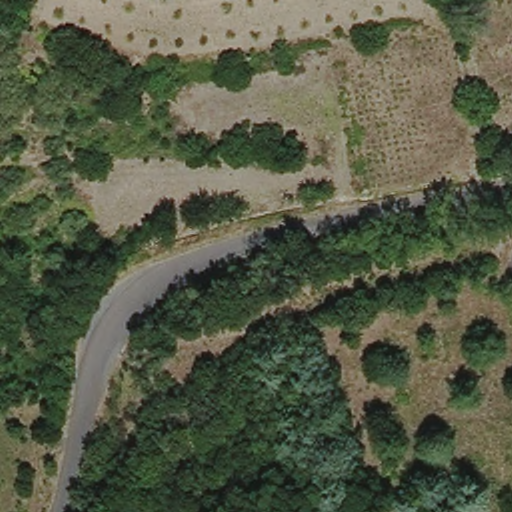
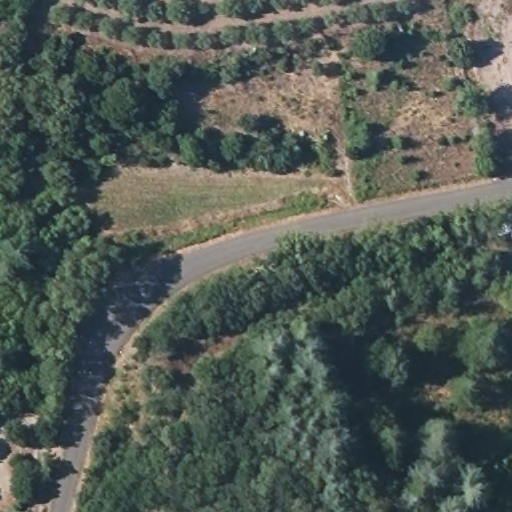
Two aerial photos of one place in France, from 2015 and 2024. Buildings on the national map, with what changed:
unchanged [(509,297),(492,302),(483,287),(504,281),(509,297)]

